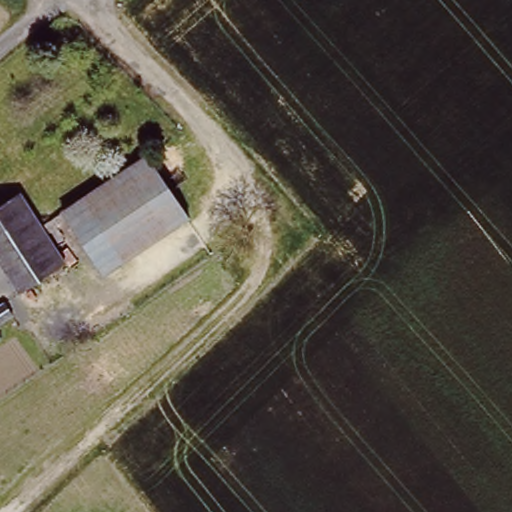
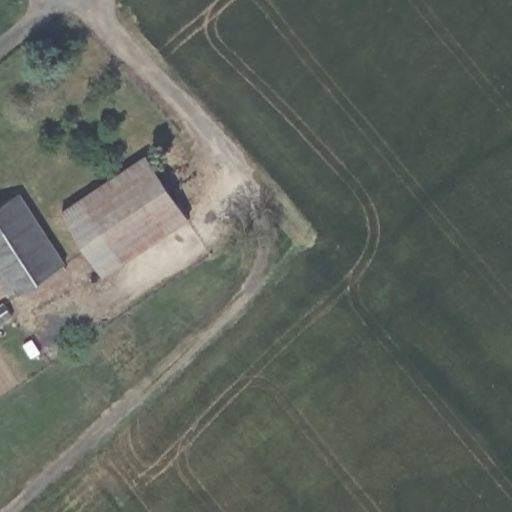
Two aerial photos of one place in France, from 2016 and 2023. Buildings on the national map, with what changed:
unchanged [(158,152),(189,199),(173,210),(183,225),(142,253),(100,191),(158,152)]
unchanged [(142,253),(100,282),(59,219),(100,191),(142,253)]
unchanged [(20,196),(64,266),(16,296),(0,271),(0,209),(20,196)]
unchanged [(2,305),(13,323),(3,330),(0,325),(0,306),(2,305)]

